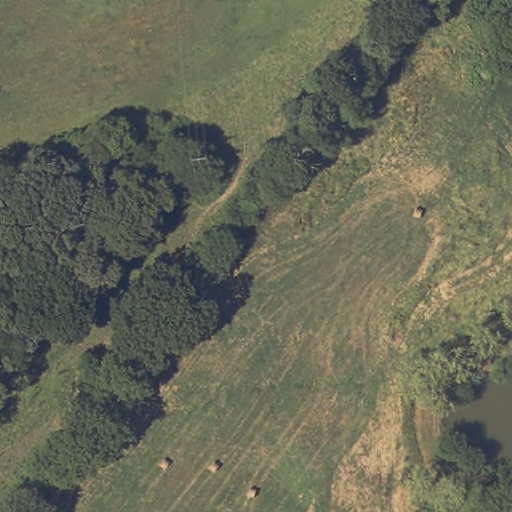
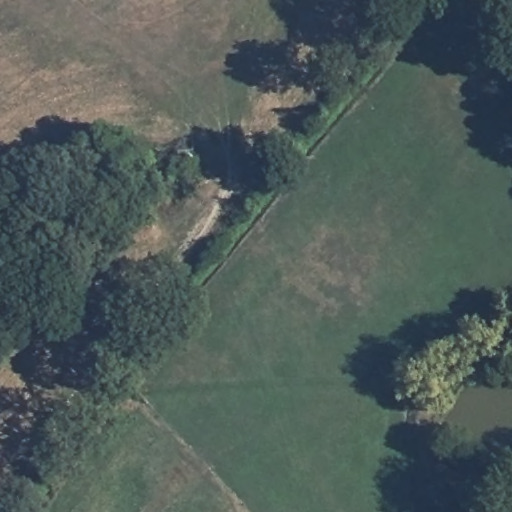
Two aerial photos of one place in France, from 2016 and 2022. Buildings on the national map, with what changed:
unchanged [(494,512),(508,505),(512,512),(494,512)]

